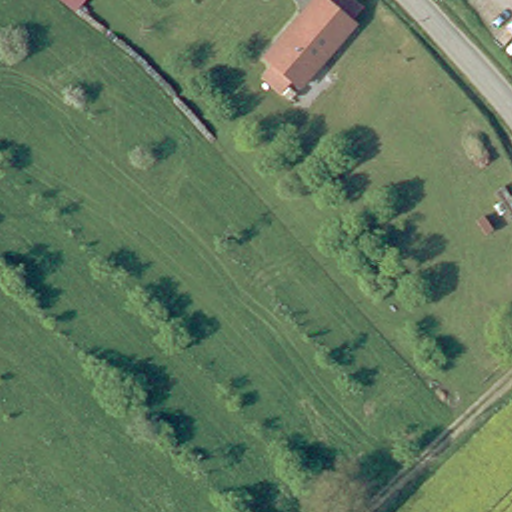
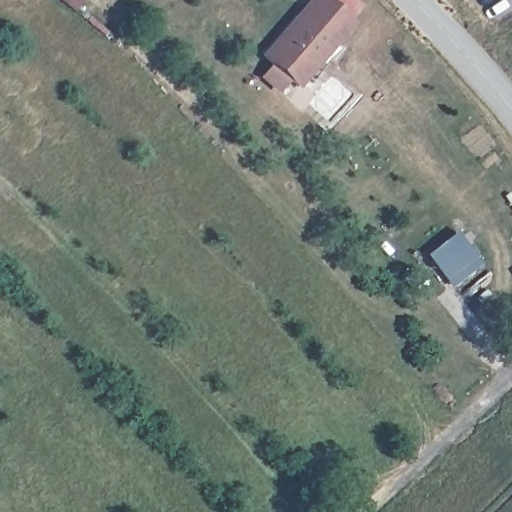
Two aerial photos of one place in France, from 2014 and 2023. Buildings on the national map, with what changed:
unchanged [(359,25),(299,92),(291,83),(280,94),(257,76),(270,64),(259,55),(308,0),(330,0),(359,25)]
new [(456,232),(482,264),(453,287),(427,256),(456,232)]

